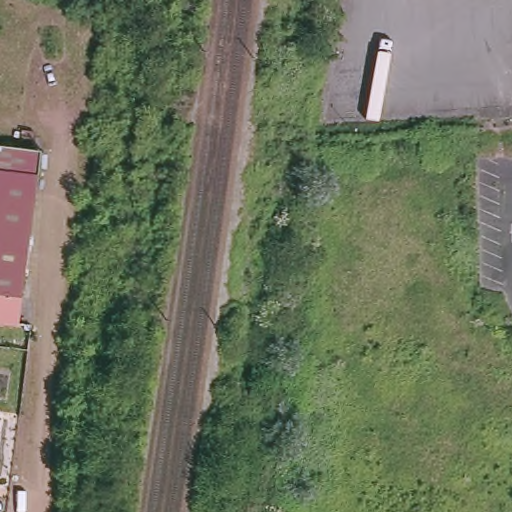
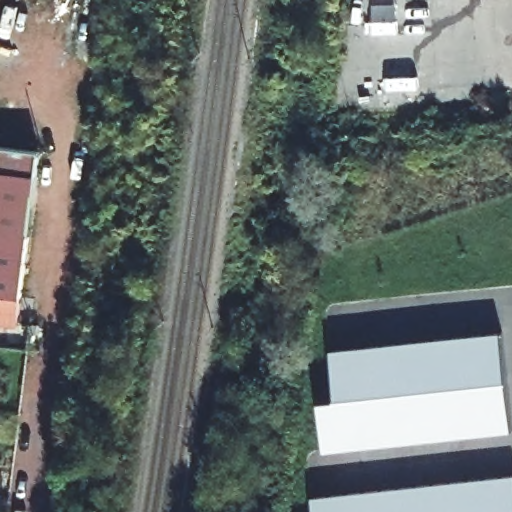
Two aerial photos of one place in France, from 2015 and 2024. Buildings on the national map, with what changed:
unchanged [(0,275),(0,146),(40,151),(38,166),(23,278),(0,275)]
unchanged [(18,324),(0,321),(0,275),(23,278),(18,324)]
new [(330,353),(502,338),(512,432),(512,437),(320,456),(318,413),(334,407),(330,353)]
new [(308,501),(512,479),(512,512),(309,512),(308,501)]

